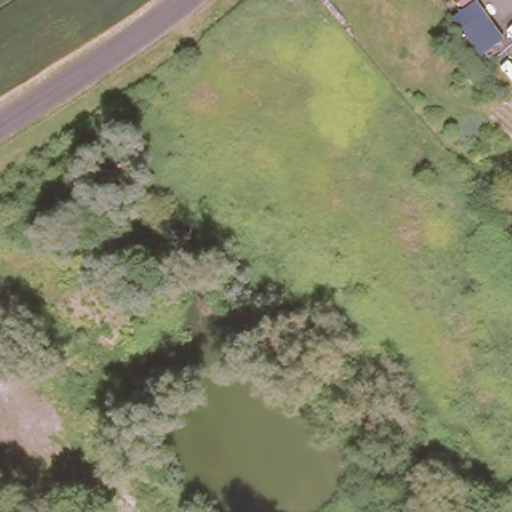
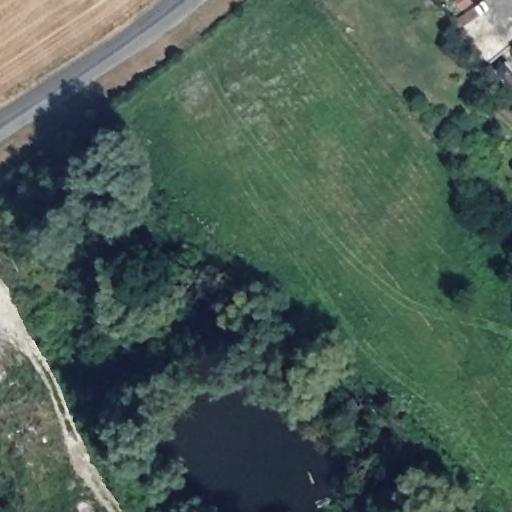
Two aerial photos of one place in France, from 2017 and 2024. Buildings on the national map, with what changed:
unchanged [(479,58),(453,17),(477,0),(478,0),(504,38),(479,58)]

